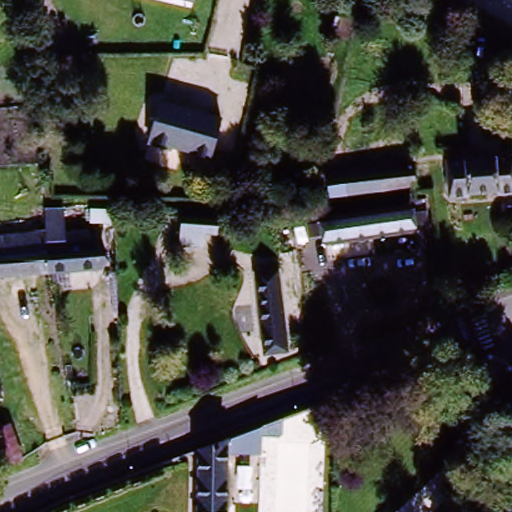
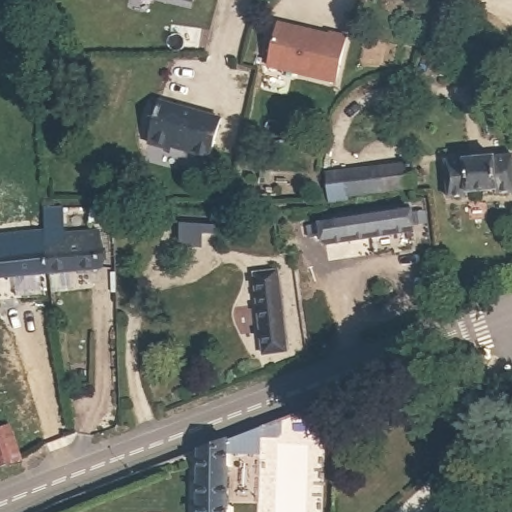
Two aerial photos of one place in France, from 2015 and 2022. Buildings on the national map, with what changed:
new [(332,30),(332,28),(350,32),(338,81),(265,63),(276,17),(332,30)]
unchanged [(150,142),(163,104),(222,117),(213,156),(150,142)]
unchanged [(468,200),(452,201),(447,163),(512,155),(512,194),(497,196),(494,190),(477,192),(468,200)]
unchanged [(395,192),(351,195),(352,207),(313,210),(312,188),(332,186),(332,174),(417,167),(419,202),(395,204),(395,192)]
unchanged [(412,210),(414,233),(331,243),(329,220),(412,210)]
unchanged [(178,215),(220,216),(218,237),(204,237),(202,248),(179,247),(178,215)]
unchanged [(9,250),(7,229),(45,226),(45,245),(54,245),(57,272),(0,277),(0,251),(9,250)]
unchanged [(77,244),(77,233),(104,232),(106,267),(57,272),(54,245),(77,244)]
unchanged [(257,271),(281,270),(288,348),(264,351),(257,271)]
unchanged [(3,389),(28,463),(5,472),(0,459),(0,380),(3,389)]
unchanged [(228,444),(260,430),(260,457),(228,458),(228,444)]
unchanged [(227,512),(193,512),(194,452),(227,440),(227,457),(227,463),(227,512)]

